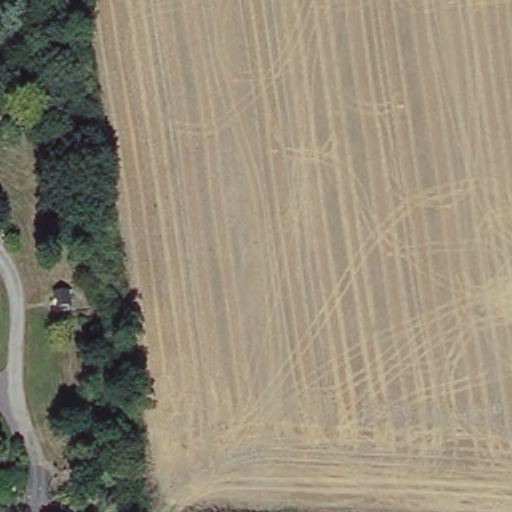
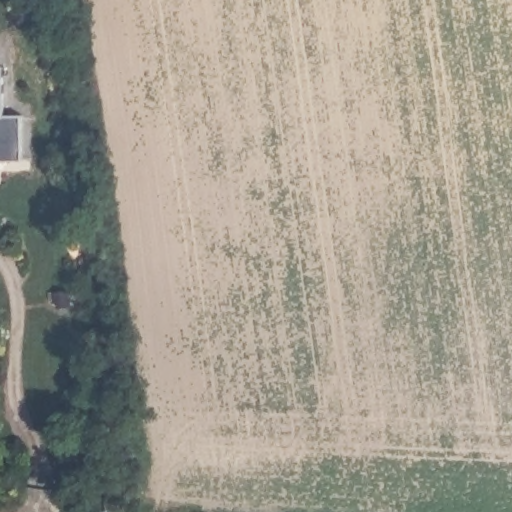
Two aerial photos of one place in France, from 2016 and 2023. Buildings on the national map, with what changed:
new [(4,66),(6,112),(21,112),(22,159),(0,160),(0,66),(4,66)]

